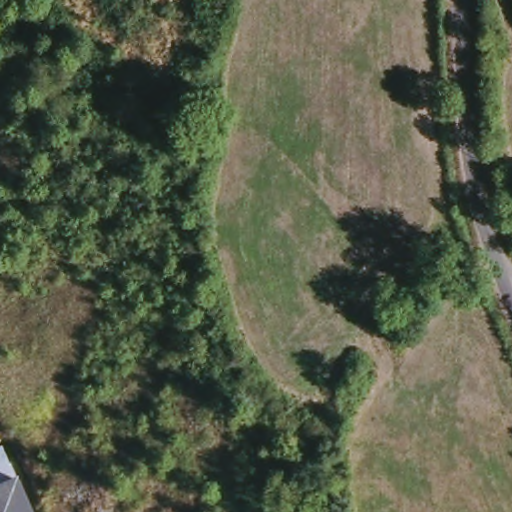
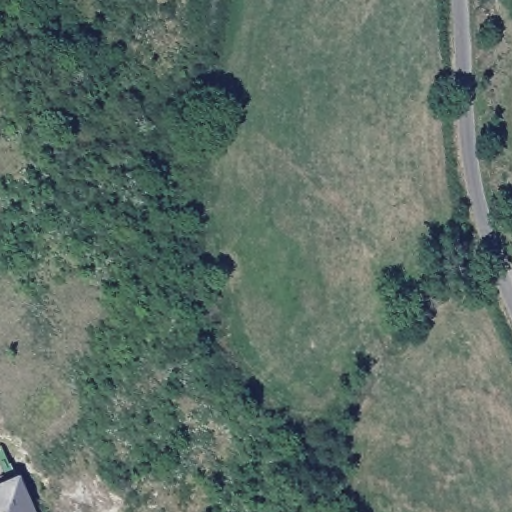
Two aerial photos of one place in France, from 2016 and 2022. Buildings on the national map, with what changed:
unchanged [(35,512),(0,512),(0,453),(8,448),(35,512)]

